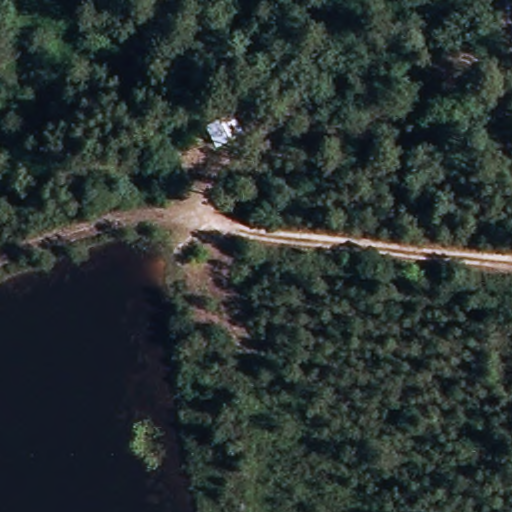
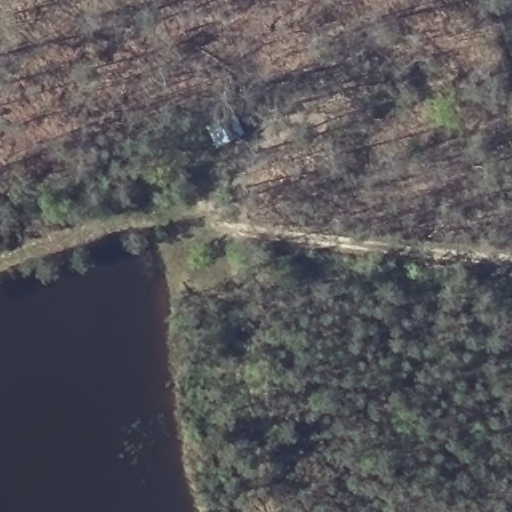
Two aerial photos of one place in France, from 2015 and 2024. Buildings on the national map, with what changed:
unchanged [(199,128),(226,115),(240,135),(210,150),(199,128)]

